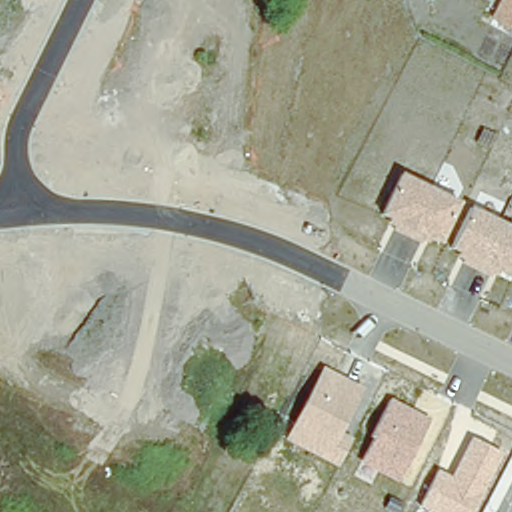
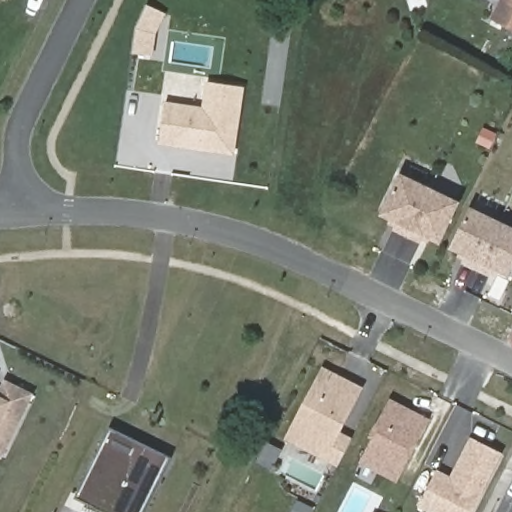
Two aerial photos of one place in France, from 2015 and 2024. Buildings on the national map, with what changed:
unchanged [(501,0),(512,0),(512,29),(491,18),(501,0)]
new [(159,146),(165,102),(202,107),(205,82),(244,87),(235,156),(159,146)]
unchanged [(392,230),(394,227),(388,224),(389,220),(381,215),(401,172),(461,202),(442,244),(430,237),(428,242),(422,240),(421,245),(392,230)]
unchanged [(464,261),(457,257),(459,252),(452,248),(471,206),(512,226),(512,273),(510,276),(499,270),(498,276),(492,273),(490,277),(462,263),(464,261)]
unchanged [(338,467),(286,440),(324,367),(365,388),(342,432),(354,437),(338,467)]
new [(4,456),(0,454),(0,377),(34,394),(4,456)]
unchanged [(399,482),(361,462),(373,438),(370,437),(391,398),(431,419),(399,482)]
new [(144,512),(101,512),(73,498),(110,427),(172,458),(144,512)]
unchanged [(473,512),(428,512),(419,508),(438,470),(452,477),(471,438),(504,453),(473,512)]

